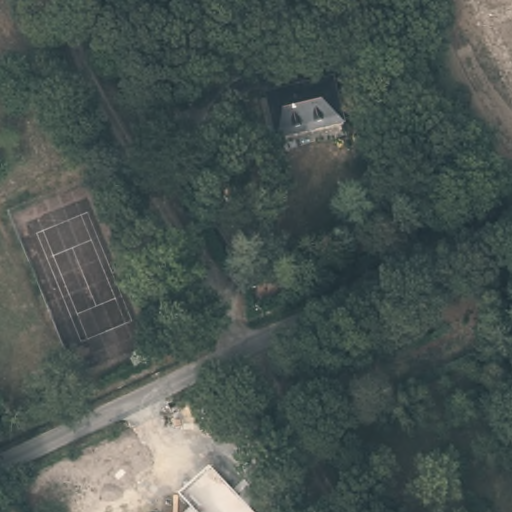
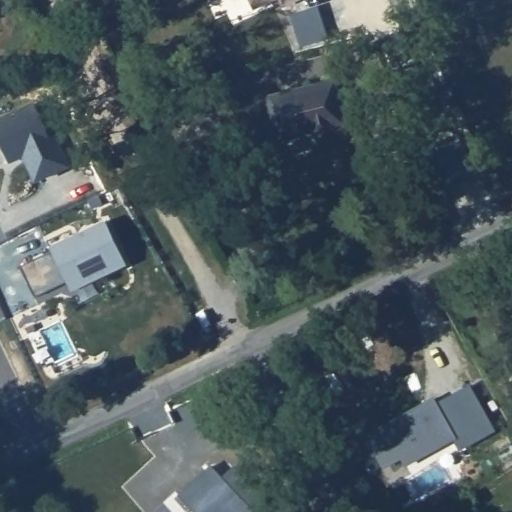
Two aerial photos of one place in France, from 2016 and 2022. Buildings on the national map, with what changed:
new [(253,10),(249,0),(277,0),(253,10)]
new [(282,7),(279,0),(300,0),(282,7)]
unchanged [(290,147),(278,106),(345,90),(356,131),(290,147)]
new [(47,130),(52,128),(70,166),(36,181),(25,156),(10,162),(0,141),(0,120),(35,103),(47,130)]
new [(107,221),(127,262),(71,288),(69,282),(36,298),(21,267),(54,251),(52,248),(107,221)]
new [(434,395),(437,402),(471,383),(497,431),(460,452),(455,440),(407,468),(402,459),(383,470),(364,435),(434,395)]
unchanged [(180,495),(212,464),(253,512),(192,512),(195,510),(180,495)]

